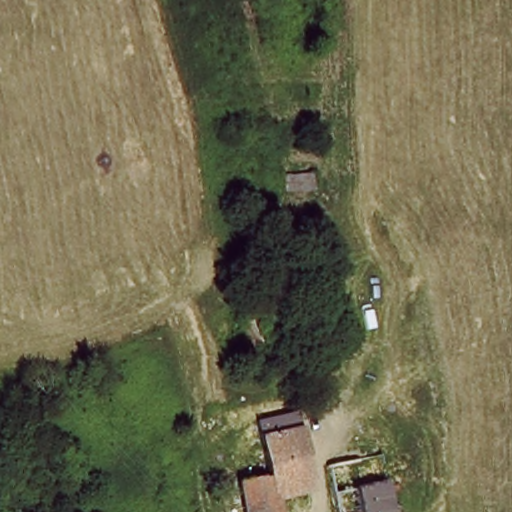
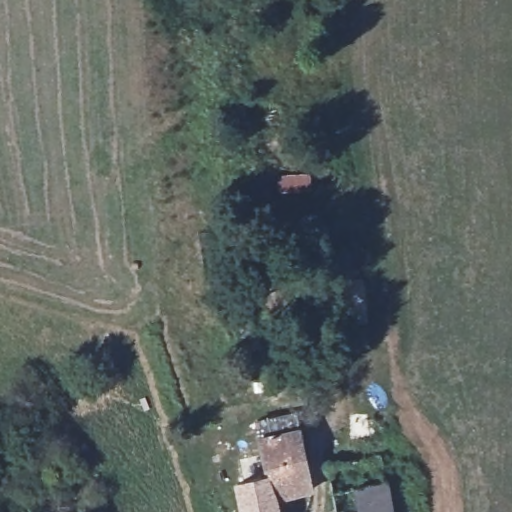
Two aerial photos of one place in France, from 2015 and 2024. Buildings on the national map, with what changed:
unchanged [(294,408),(304,454),(261,463),(252,418),(294,408)]
unchanged [(240,512),(234,481),(263,476),(261,463),(304,454),(309,490),(273,497),(275,512),(240,512)]
unchanged [(350,486),(387,478),(393,512),(354,512),(354,511),(350,486)]

